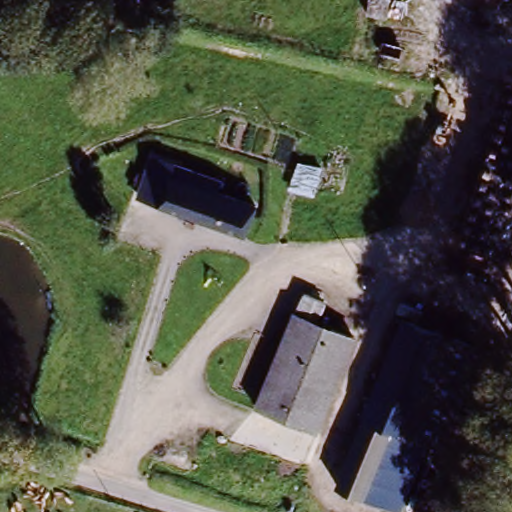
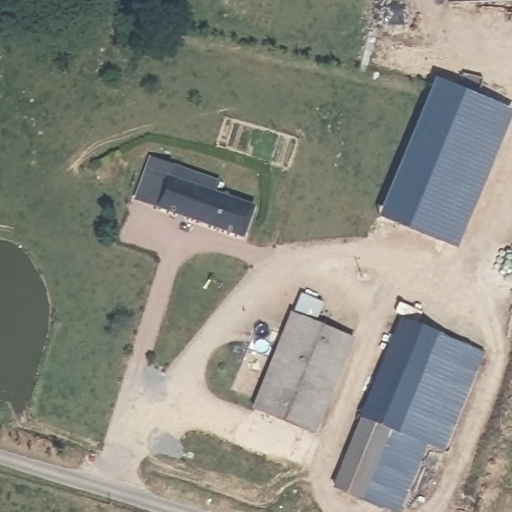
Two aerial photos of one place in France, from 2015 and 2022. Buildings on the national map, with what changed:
new [(512,109),(512,117),(458,248),(382,216),(437,77),(512,109)]
unchanged [(232,181),(230,193),(259,202),(249,235),(142,200),(149,178),(161,182),(164,174),(196,184),(200,171),(232,181)]
unchanged [(307,430),(253,406),(296,315),(307,292),(325,300),(313,324),(350,340),(307,430)]
unchanged [(398,322),(471,352),(438,429),(418,421),(386,494),(333,473),(398,322)]

